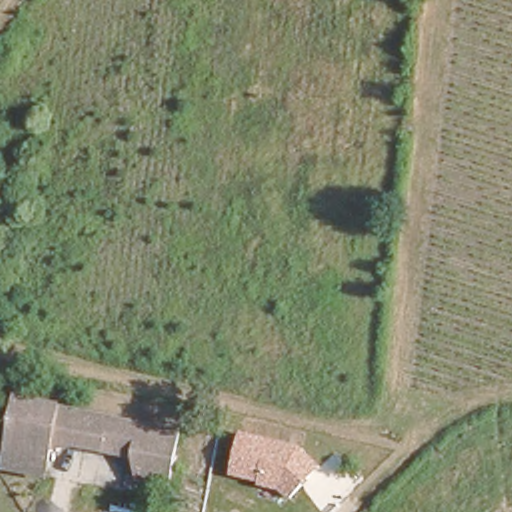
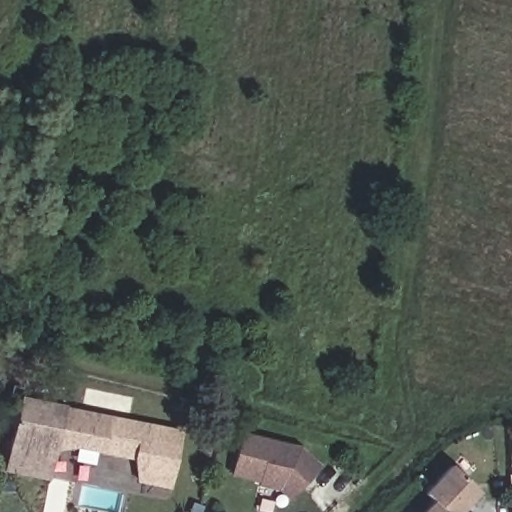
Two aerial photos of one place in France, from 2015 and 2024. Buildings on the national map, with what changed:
unchanged [(7,458),(12,428),(0,426),(0,397),(179,435),(171,490),(140,483),(135,460),(74,450),(50,451),(47,466),(44,480),(4,472),(7,458)]
unchanged [(288,500),(278,490),(257,486),(258,482),(231,475),(240,432),(300,446),(322,468),(288,500)]
new [(423,491),(448,464),(477,491),(457,512),(419,512),(431,500),(423,491)]

